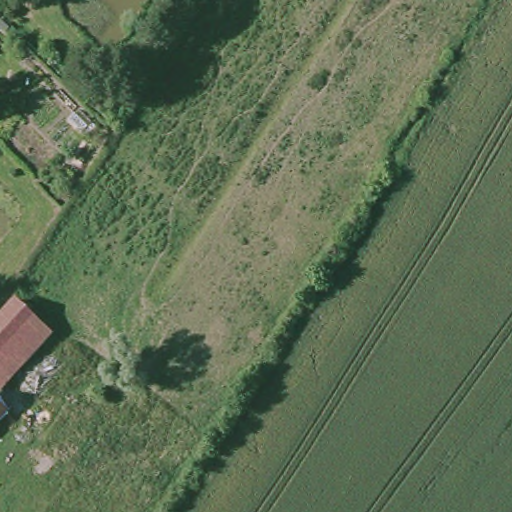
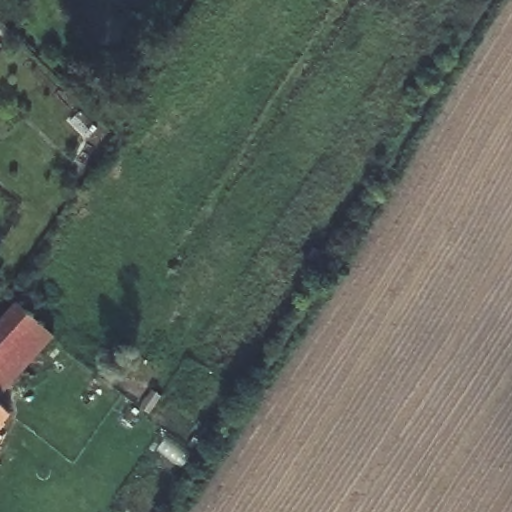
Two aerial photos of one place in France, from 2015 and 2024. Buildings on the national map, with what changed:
unchanged [(53,336),(0,393),(0,320),(16,303),(53,336)]
unchanged [(8,413),(0,422),(0,404),(8,413)]

